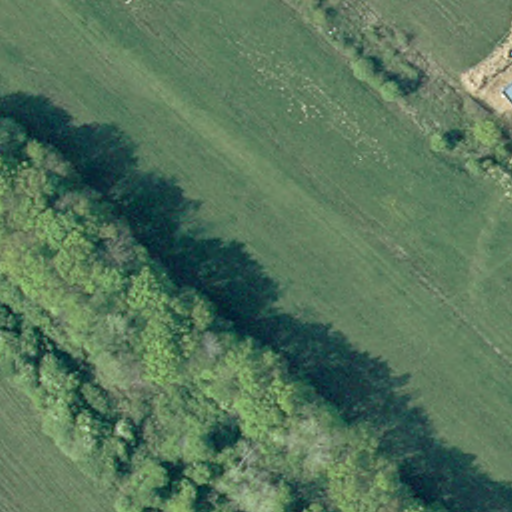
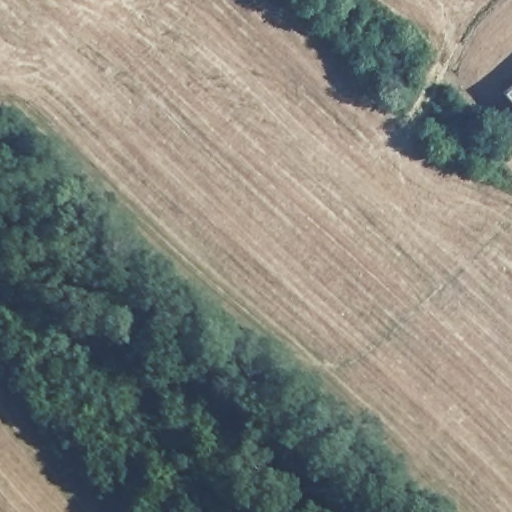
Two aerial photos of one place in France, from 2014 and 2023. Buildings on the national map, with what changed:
unchanged [(512,86),(512,103),(504,93),(512,86)]

